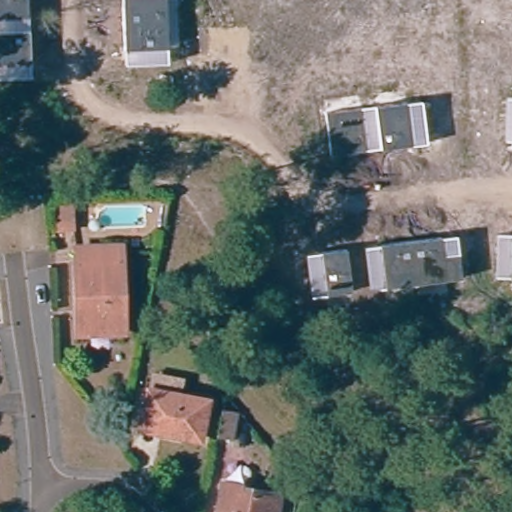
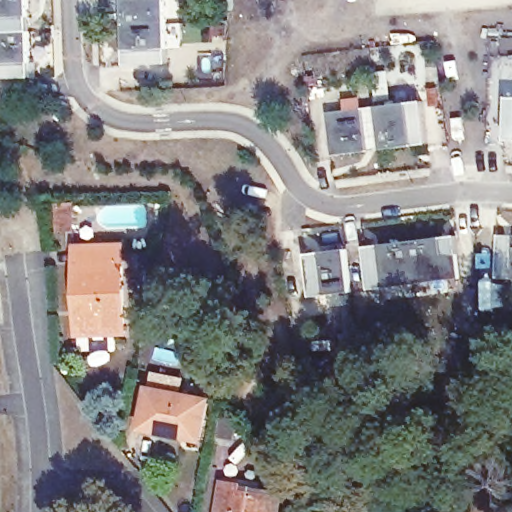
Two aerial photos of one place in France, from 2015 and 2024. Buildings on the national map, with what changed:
unchanged [(31,77),(0,78),(0,0),(29,0),(31,77)]
unchanged [(169,63),(125,65),(122,0),(166,0),(169,63)]
unchanged [(512,141),(504,141),(506,97),(512,97),(512,141)]
unchanged [(422,100),(428,143),(331,157),(326,112),(422,100)]
unchanged [(49,194),(65,194),(66,219),(49,220),(49,194)]
unchanged [(70,249),(77,248),(76,235),(116,232),(117,273),(72,277),(70,249)]
unchanged [(457,235),(463,279),(369,290),(364,247),(457,235)]
unchanged [(512,279),(495,278),(496,235),(512,235),(512,279)]
unchanged [(345,248),(351,292),(311,298),(305,254),(345,248)]
unchanged [(117,273),(118,317),(74,319),(72,277),(117,273)]
unchanged [(154,387),(147,426),(204,436),(201,445),(136,433),(144,386),(147,387),(150,371),(185,377),(181,393),(154,387)]
unchanged [(210,398),(204,436),(147,426),(154,387),(210,398)]
unchanged [(239,417),(235,441),(220,439),(225,414),(239,417)]
unchanged [(245,486),(283,492),(280,512),(222,512),(229,476),(245,480),(245,486)]

